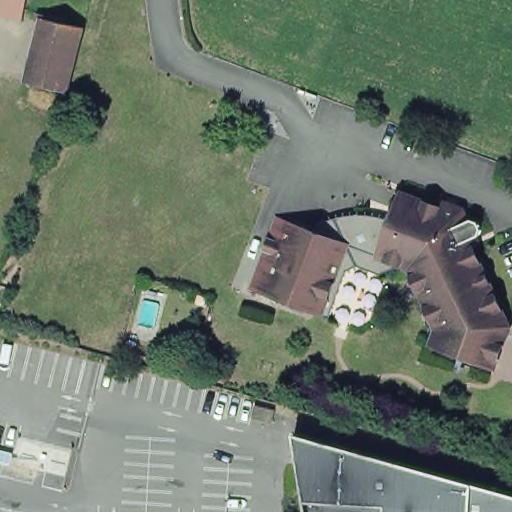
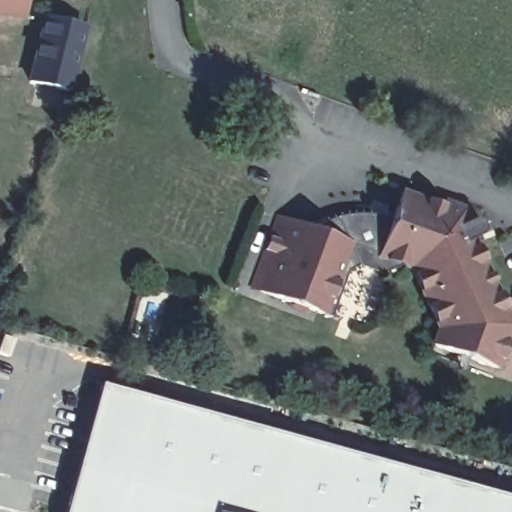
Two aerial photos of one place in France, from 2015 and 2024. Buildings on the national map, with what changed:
unchanged [(0,1),(0,0),(27,0),(25,6),(0,1)]
unchanged [(47,23),(47,21),(40,19),(43,11),(49,13),(49,15),(81,24),(79,30),(63,89),(31,82),(47,23)]
unchanged [(448,199),(469,207),(475,219),(478,218),(484,219),(488,227),(485,234),(475,239),(512,319),(512,333),(499,368),(437,344),(443,327),(416,266),(408,263),(387,273),(363,264),(352,269),(335,316),(256,287),(283,215),(316,228),(321,224),(326,221),(330,219),(335,217),(341,215),(346,214),(350,214),(357,213),(363,213),(369,213),(374,214),(381,214),(386,215),(391,217),(395,218),(405,192),(445,207),(448,199)]
new [(512,512),(248,512),(221,504),(219,512),(68,512),(103,382),(512,498),(512,512)]
demolished [(274,407),(271,419),(251,414),(254,402),(274,407)]
demolished [(420,472),(512,497),(512,512),(305,512),(293,436),(420,472)]

